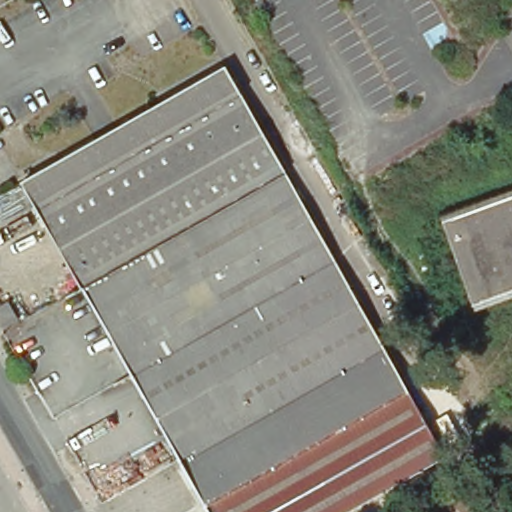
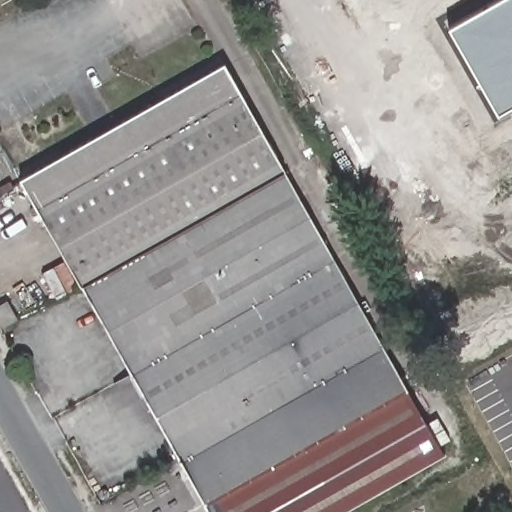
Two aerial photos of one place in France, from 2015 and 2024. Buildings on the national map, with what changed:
new [(512,107),(497,115),(449,29),(500,0),(512,0),(512,107)]
unchanged [(20,180),(223,65),(283,171),(80,286),(20,180)]
unchanged [(283,171),(405,387),(203,503),(80,286),(283,171)]
demolished [(438,215),(512,189),(512,285),(469,301),(438,215)]
unchanged [(6,301),(17,320),(0,330),(0,304),(6,301)]
unchanged [(443,456),(344,512),(208,512),(203,503),(405,387),(443,456)]

